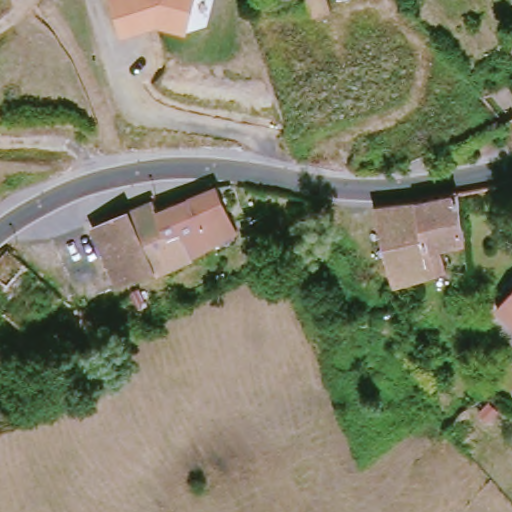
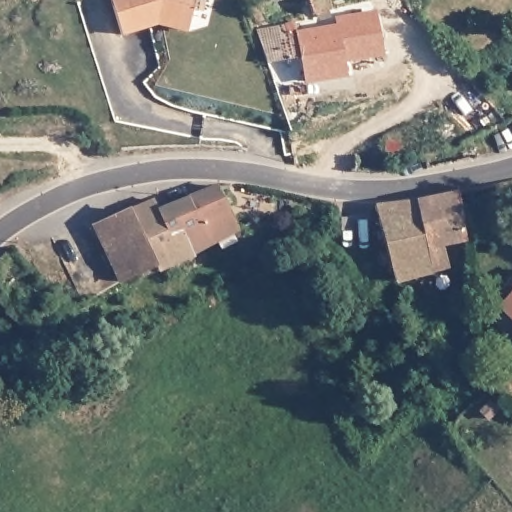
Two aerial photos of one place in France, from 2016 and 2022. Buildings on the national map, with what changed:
unchanged [(153,24),(119,35),(109,0),(193,0),(189,21),(187,31),(153,24)]
unchanged [(320,10),(298,11),(297,0),(319,0),(320,10)]
new [(304,84),(296,32),(335,26),(334,18),(377,11),(384,56),(344,63),(346,77),(304,84)]
unchanged [(512,113),(512,146),(508,148),(495,120),(512,113)]
unchanged [(180,262),(161,213),(224,189),(241,237),(180,262)]
unchanged [(473,250),(465,273),(395,287),(377,209),(412,209),(441,205),(462,201),(469,229),(473,250)]
unchanged [(120,288),(98,238),(96,233),(159,207),(161,213),(180,262),(120,288)]
unchanged [(31,339),(2,308),(0,309),(0,263),(16,249),(68,302),(31,339)]
unchanged [(512,302),(512,322),(502,314),(512,302)]

